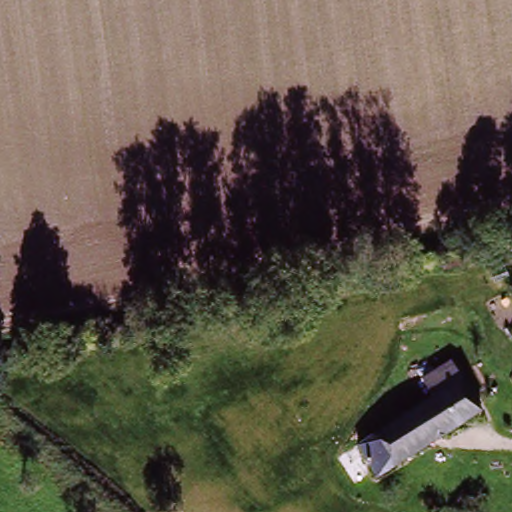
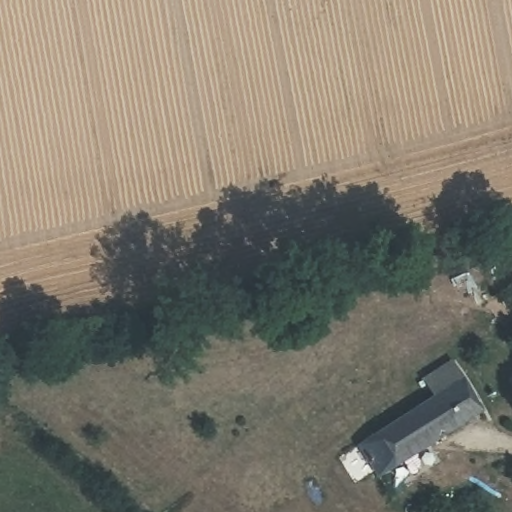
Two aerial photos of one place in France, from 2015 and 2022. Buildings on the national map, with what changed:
unchanged [(376,442),(434,405),(423,389),(435,380),(439,383),(456,373),(485,414),(397,472),(376,442)]

